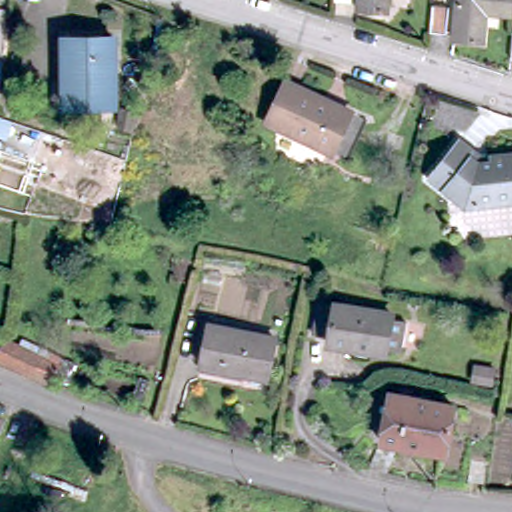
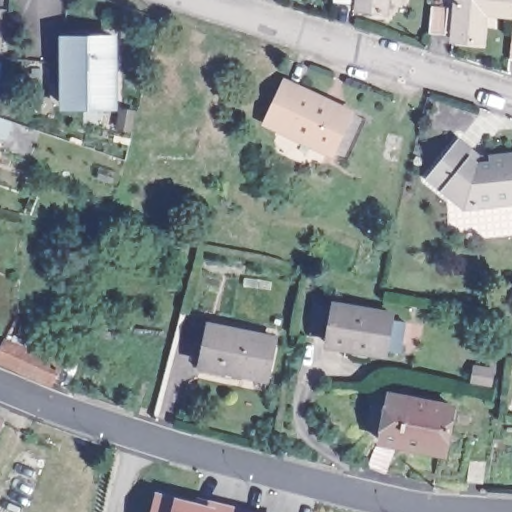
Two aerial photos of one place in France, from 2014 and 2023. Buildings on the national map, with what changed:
unchanged [(391,9),(364,7),(364,0),(391,0),(391,9)]
unchanged [(430,0),(448,0),(446,24),(428,23),(430,0)]
unchanged [(481,35),(452,32),(455,0),(512,0),(512,6),(484,4),(481,35)]
unchanged [(3,12),(12,14),(6,59),(0,59),(0,12),(3,12)]
unchanged [(112,36),(111,101),(65,101),(65,80),(58,80),(58,36),(112,36)]
unchanged [(357,113),(339,154),(257,117),(275,76),(357,113)]
unchanged [(465,205),(430,174),(463,139),(477,151),(480,153),(483,155),(487,154),(512,154),(512,203),(492,204),(465,205)]
unchanged [(399,350),(381,347),(381,352),(322,342),(329,302),(405,315),(399,350)]
unchanged [(209,322),(273,335),(271,346),(265,376),(201,363),(206,337),(209,322)]
unchanged [(50,385),(0,363),(0,348),(3,341),(55,365),(59,366),(50,385)]
unchanged [(392,391),(457,405),(449,448),(445,447),(444,450),(434,448),(435,445),(384,435),(392,391)]
unchanged [(400,443),(390,468),(372,461),(380,438),(400,443)]
unchanged [(479,483),(466,482),(469,460),(483,462),(479,483)]
new [(176,495),(218,505),(241,512),(152,512),(157,492),(176,495)]

